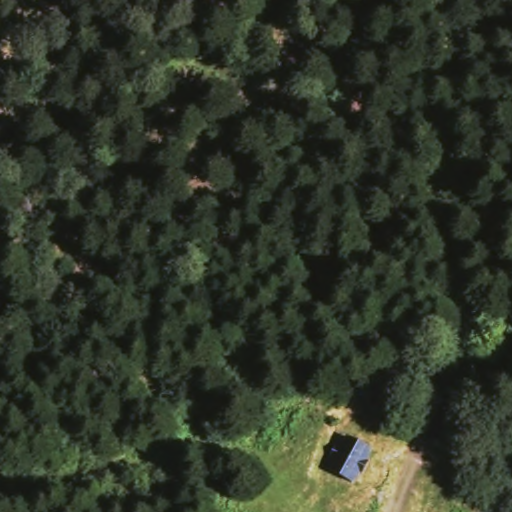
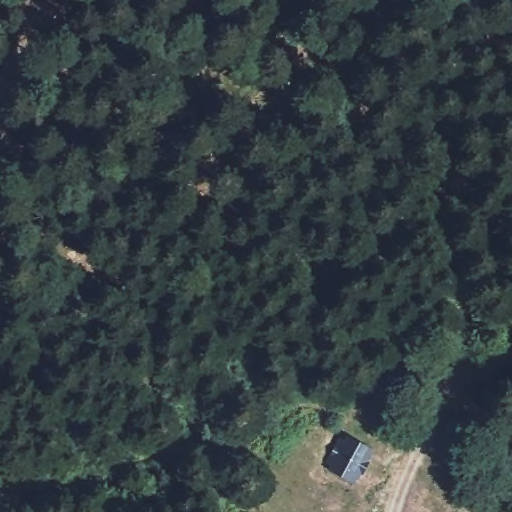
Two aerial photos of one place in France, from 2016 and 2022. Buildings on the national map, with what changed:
unchanged [(365,467),(358,483),(324,467),(339,434),(374,450),(365,467)]

